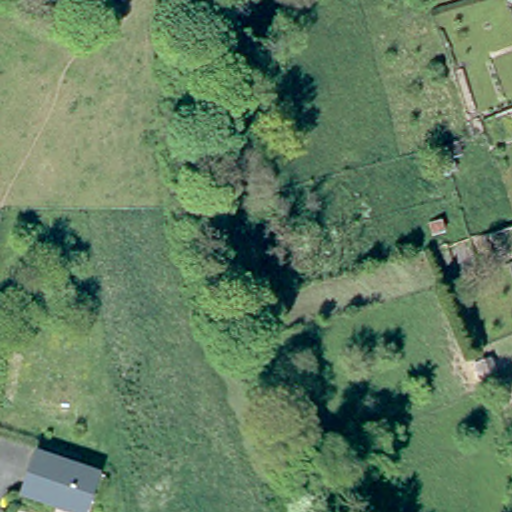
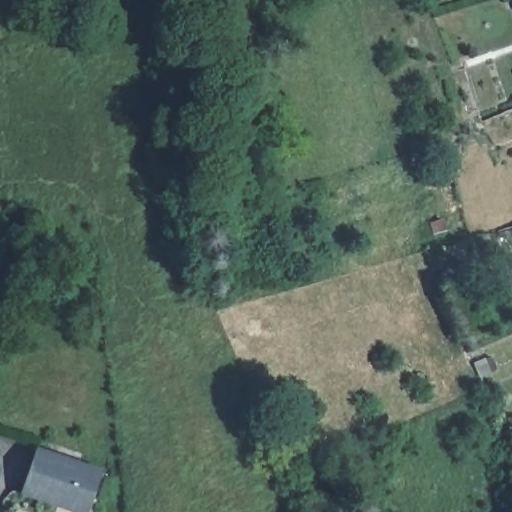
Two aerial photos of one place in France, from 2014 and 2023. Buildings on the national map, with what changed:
unchanged [(437,150),(460,144),(463,154),(448,158),(452,172),(445,175),(437,150)]
unchanged [(82,512),(41,497),(25,492),(39,450),(56,456),(100,472),(87,512),(82,512)]

